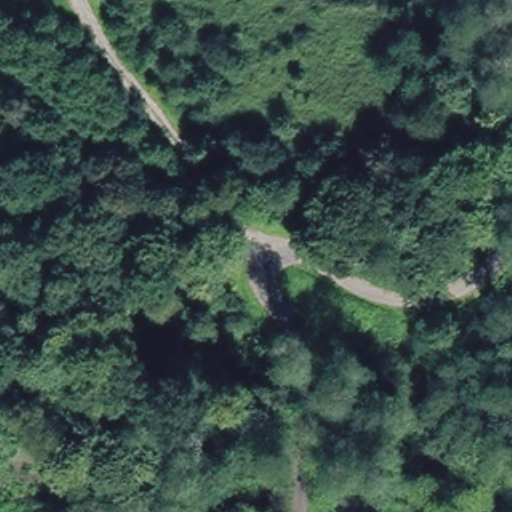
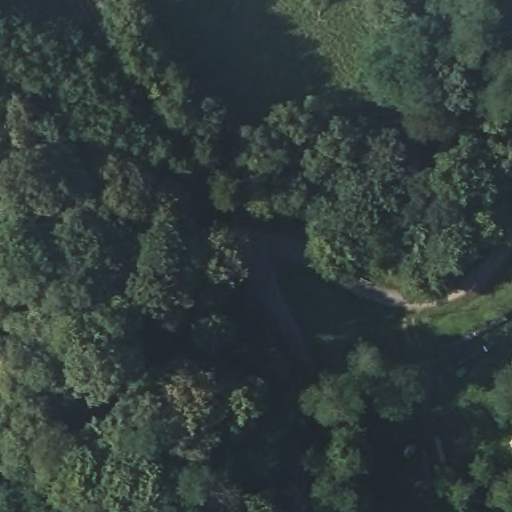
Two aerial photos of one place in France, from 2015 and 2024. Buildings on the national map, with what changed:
unchanged [(492,335),(471,300),(512,285),(512,327),(492,335)]

